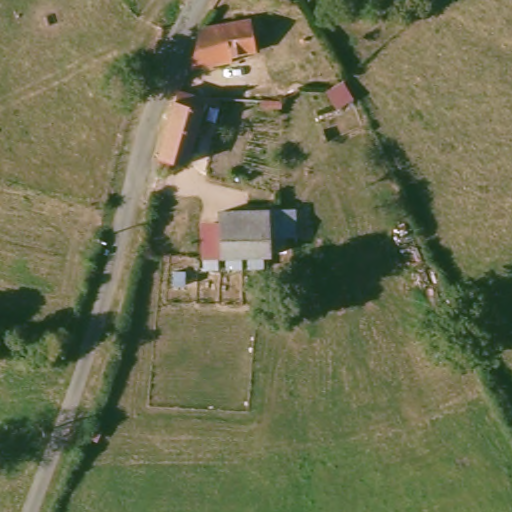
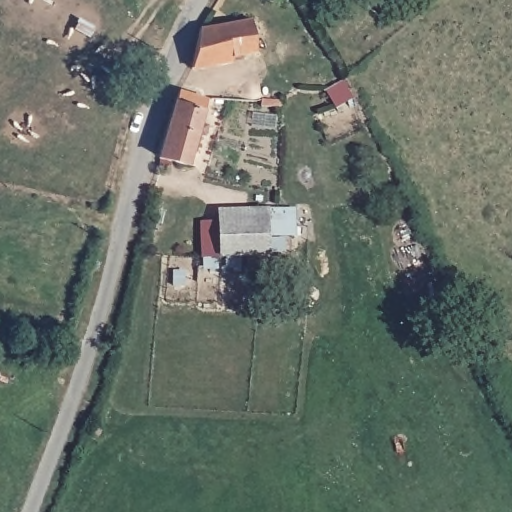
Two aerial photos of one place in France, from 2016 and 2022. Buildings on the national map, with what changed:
unchanged [(245,13),(251,45),(227,49),(228,57),(191,64),(191,38),(197,22),(245,13)]
unchanged [(200,101),(195,121),(201,122),(199,132),(192,130),(184,162),(155,154),(174,93),(200,101)]
unchanged [(292,234),(264,237),(265,254),(215,256),(195,257),(195,219),(213,219),(214,208),(264,206),(264,212),(293,208),(292,234)]

